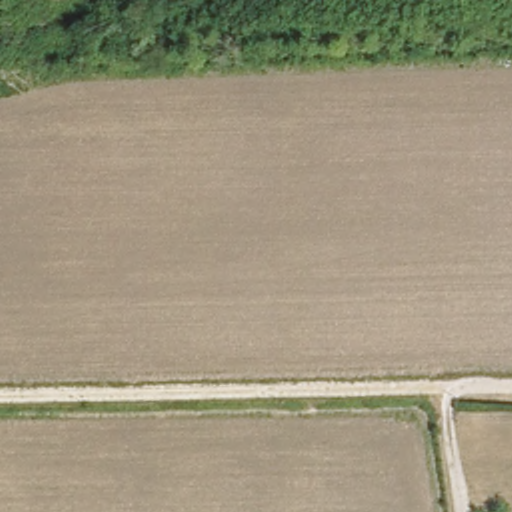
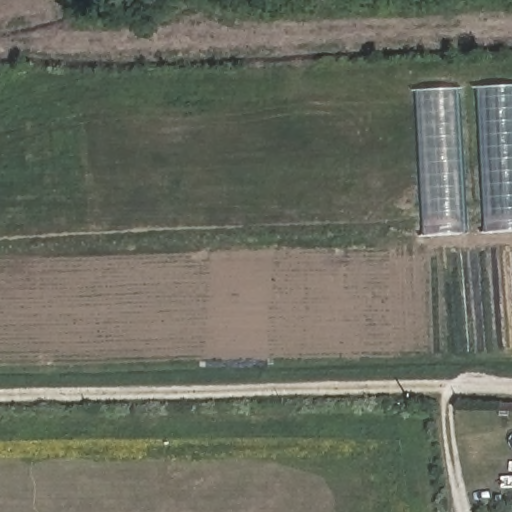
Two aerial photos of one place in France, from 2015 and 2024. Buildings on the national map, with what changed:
new [(512,231),(482,233),(473,88),(512,86),(512,231)]
new [(421,236),(414,91),(458,89),(467,235),(421,236)]

